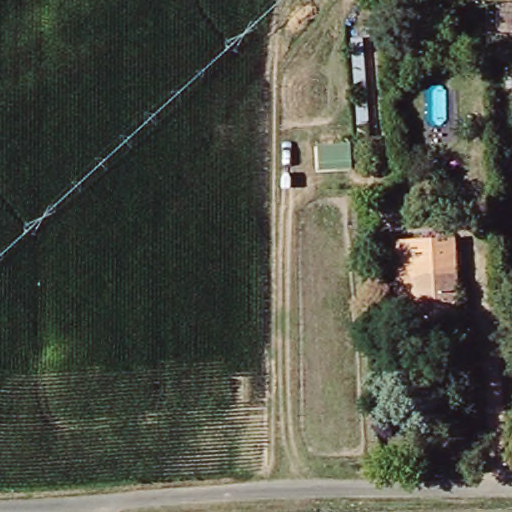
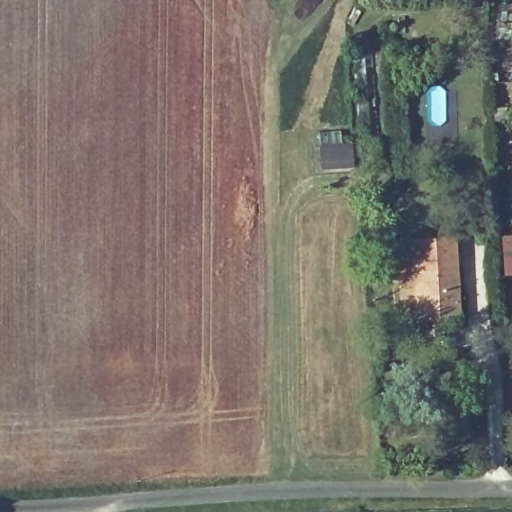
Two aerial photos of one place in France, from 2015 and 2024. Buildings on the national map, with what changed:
new [(512,235),(512,277),(502,278),(498,236),(512,235)]
unchanged [(451,236),(455,318),(412,320),(407,240),(451,236)]
unchanged [(397,320),(390,240),(407,240),(412,320),(397,320)]
unchanged [(388,278),(364,280),(362,258),(386,256),(388,278)]

